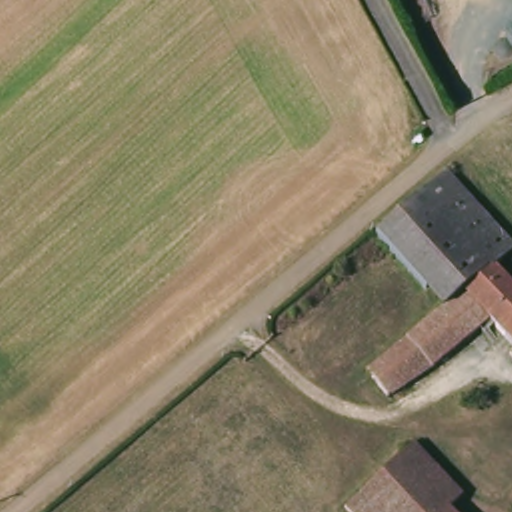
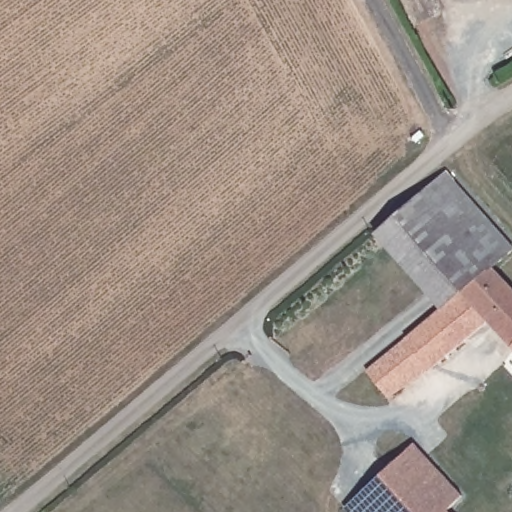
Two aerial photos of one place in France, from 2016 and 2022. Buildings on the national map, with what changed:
unchanged [(452,180),(512,247),(512,261),(497,273),(448,316),(381,241),(452,180)]
unchanged [(435,380),(394,405),(373,378),(448,316),(497,273),(512,288),(512,349),(493,329),(435,380)]
unchanged [(464,503),(454,512),(349,512),(415,450),(464,503)]

